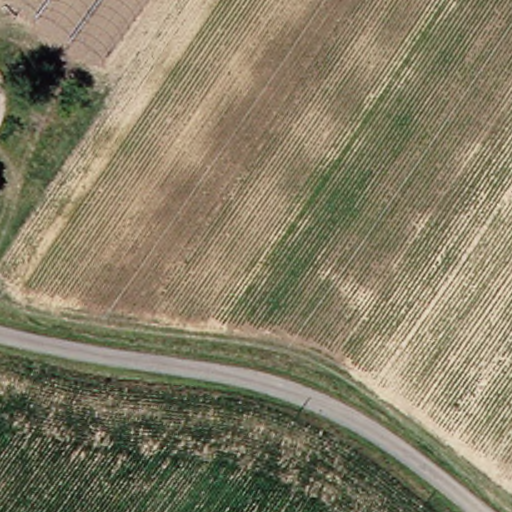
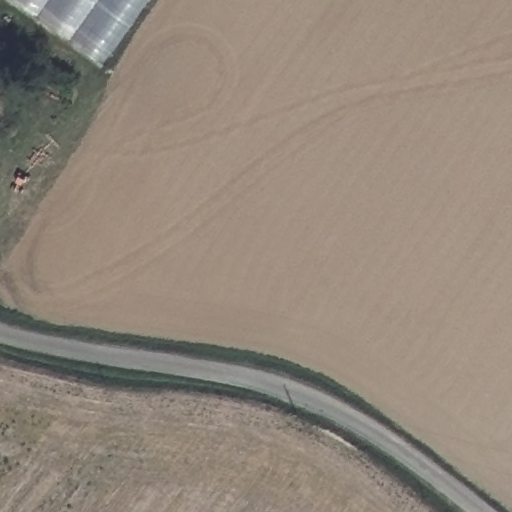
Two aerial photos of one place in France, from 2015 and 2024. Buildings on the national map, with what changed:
new [(102,59),(18,0),(145,0),(102,59)]

